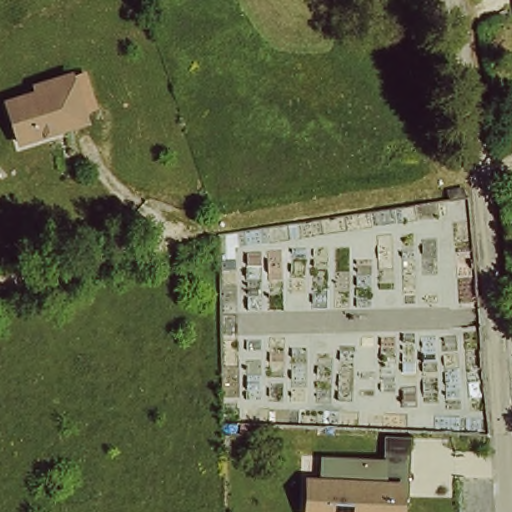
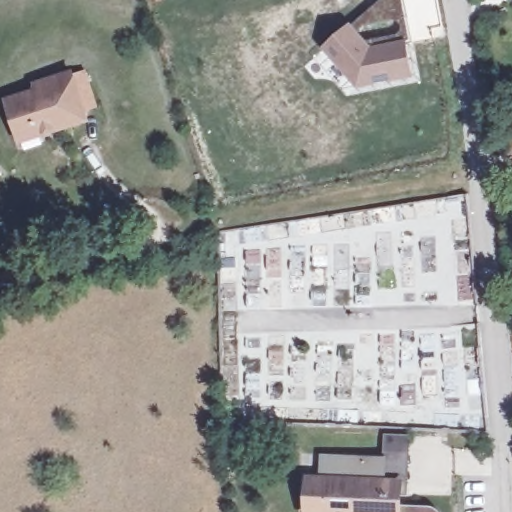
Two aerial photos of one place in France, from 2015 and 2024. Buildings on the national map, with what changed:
new [(358,85),(325,47),(349,27),(371,51),(405,46),(411,77),(358,85)]
unchanged [(76,78),(88,119),(61,126),(63,135),(44,140),(41,131),(21,136),(11,104),(41,96),(40,89),(76,78)]
unchanged [(334,481),(333,460),(394,462),(393,497),(409,496),(410,512),(316,512),(318,480),(334,481)]

